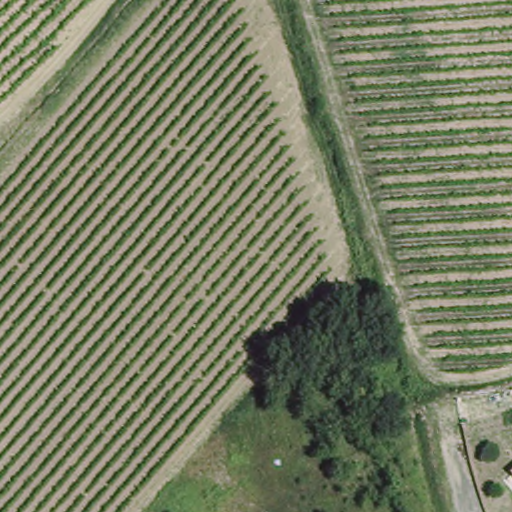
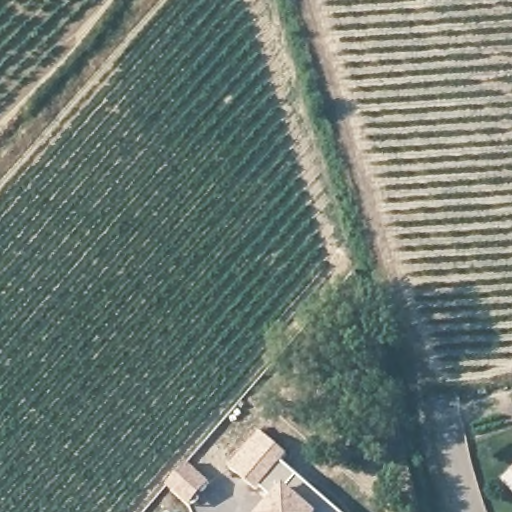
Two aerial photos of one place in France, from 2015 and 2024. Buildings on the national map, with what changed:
new [(260,432),(287,454),(282,461),(341,512),(262,512),(273,498),(260,487),(257,490),(230,467),(260,432)]

